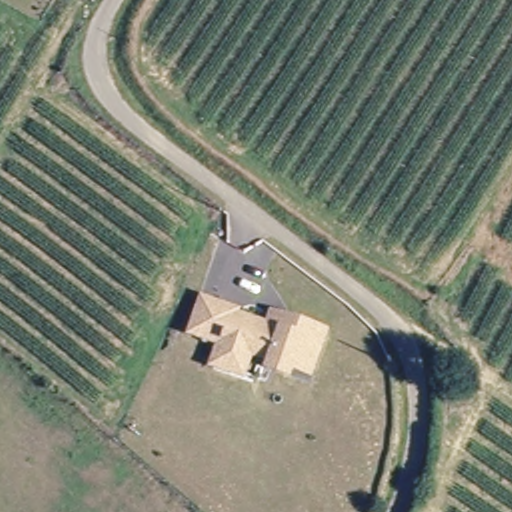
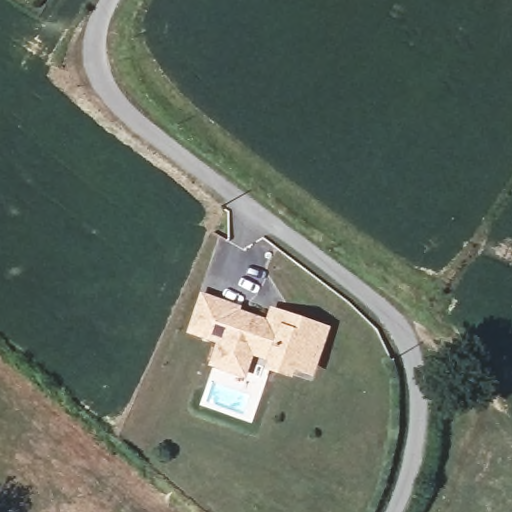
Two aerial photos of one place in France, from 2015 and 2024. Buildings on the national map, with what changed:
unchanged [(235,364),(217,354),(230,334),(200,318),(215,290),(244,306),(242,308),(275,326),(282,313),(295,320),(329,338),(310,375),(292,366),(288,370),(273,362),(275,358),(254,345),(241,367),(235,364)]

